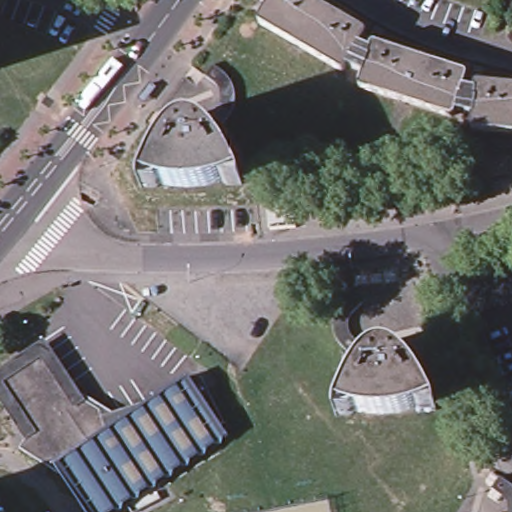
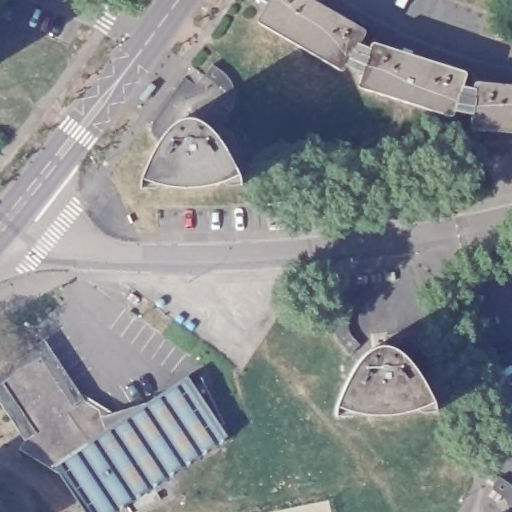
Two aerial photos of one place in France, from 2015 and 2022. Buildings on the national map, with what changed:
unchanged [(469,125),(469,111),(452,106),(450,114),(355,83),(359,70),(345,63),(342,68),(256,18),(267,0),(266,0),(319,0),(365,26),(357,40),(367,45),(370,39),(464,69),(460,82),(472,86),(472,80),(512,83),(512,128),(469,125)]
unchanged [(210,61),(222,70),(230,80),(234,92),(230,110),(221,120),(210,112),(218,101),(219,91),(215,81),(202,72),(210,61)]
unchanged [(152,142),(157,135),(160,130),(165,125),(176,120),(183,120),(192,123),(199,127),(204,132),(207,137),(230,175),(212,184),(199,187),(184,188),(174,187),(162,186),(145,181),(137,178),(152,142)]
unchanged [(348,346),(342,333),(342,316),(352,301),(360,291),(371,302),(363,310),(355,322),(361,338),(368,345),(357,356),(348,346)]
unchanged [(372,353),(384,345),(392,346),(401,347),(409,351),(415,357),(438,399),(425,405),(412,410),(402,412),(389,413),(377,413),(362,410),(347,405),(357,375),(363,363),(372,353)]
unchanged [(100,512),(88,512),(57,465),(57,466),(17,441),(29,423),(0,379),(0,372),(40,346),(72,395),(81,390),(108,406),(144,395),(185,368),(195,382),(203,377),(222,416),(219,418),(225,429),(100,512)]
unchanged [(507,496),(512,509),(512,512),(499,512),(499,510),(492,501),(481,491),(489,480),(499,488),(507,496)]

